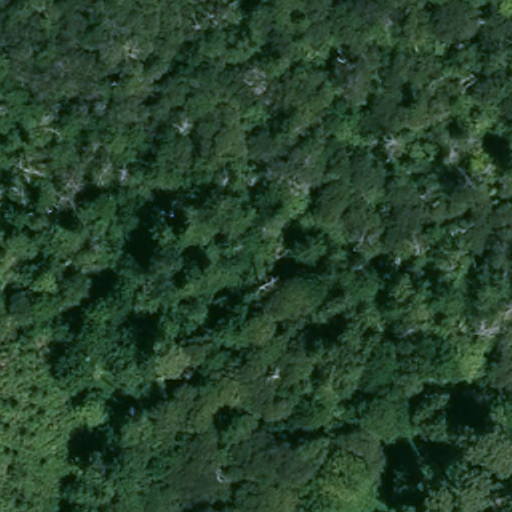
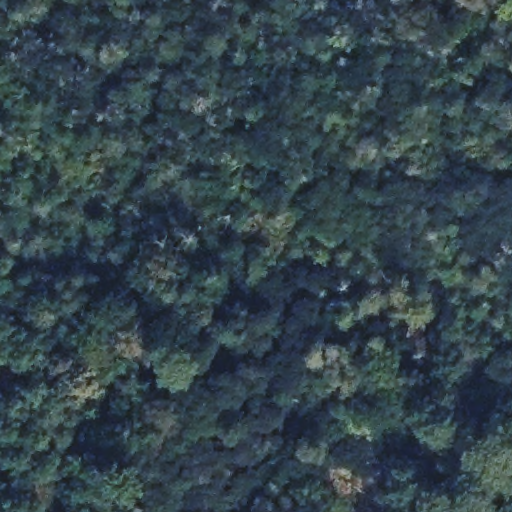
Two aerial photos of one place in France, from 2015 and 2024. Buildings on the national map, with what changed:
[]

